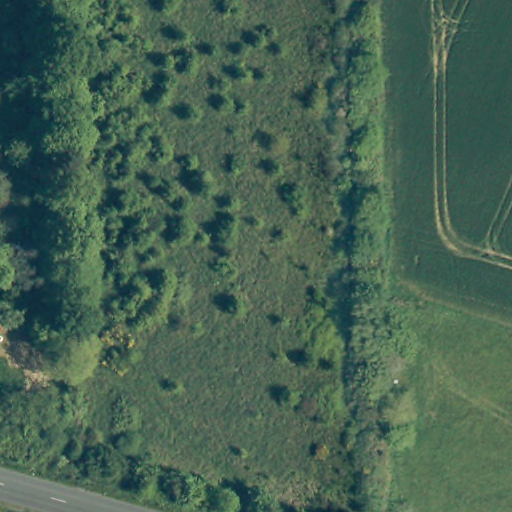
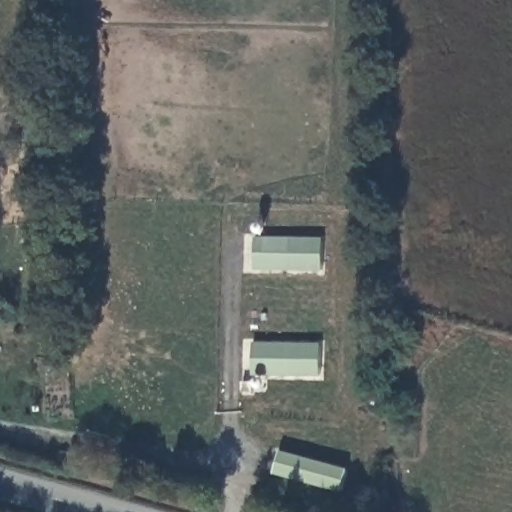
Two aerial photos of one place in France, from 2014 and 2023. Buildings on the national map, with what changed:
new [(321,272),(254,272),(255,237),(323,239),(321,272)]
new [(320,378),(252,377),(252,342),(320,344),(320,378)]
demolished [(62,448),(64,447),(66,447),(68,448),(70,449),(71,451),(72,454),(71,456),(71,458),(69,459),(67,460),(65,461),(63,461),(61,459),(60,458),(59,457),(58,454),(58,452),(59,450),(60,449),(62,448)]
new [(342,494),(274,474),(281,451),(348,470),(342,494)]

